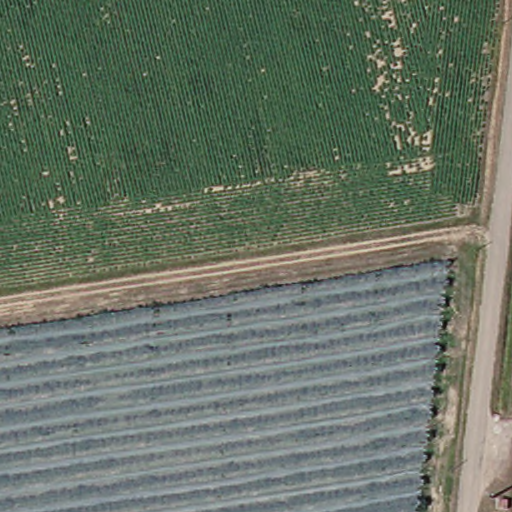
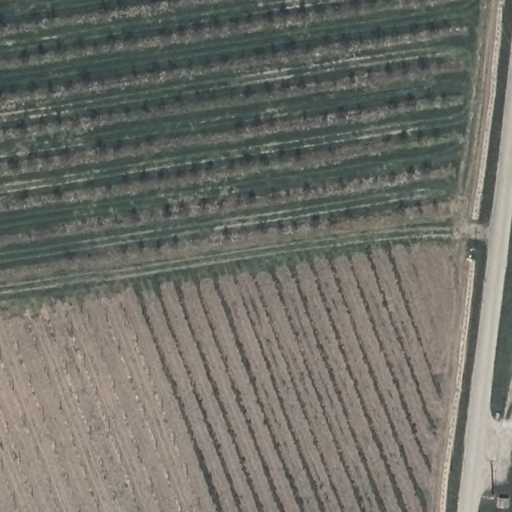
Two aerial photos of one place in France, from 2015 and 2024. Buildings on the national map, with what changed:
unchanged [(499,502),(498,492),(508,489),(511,499),(499,502)]

